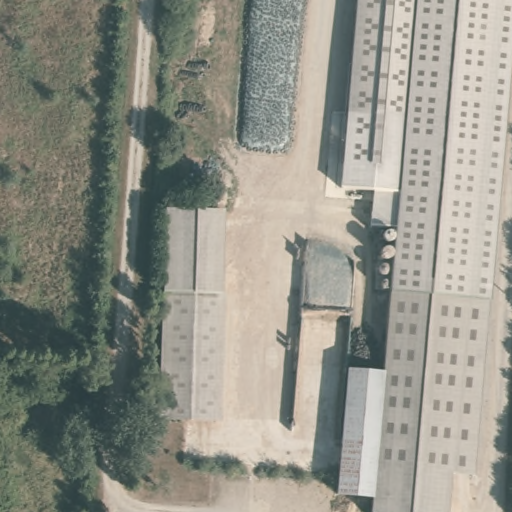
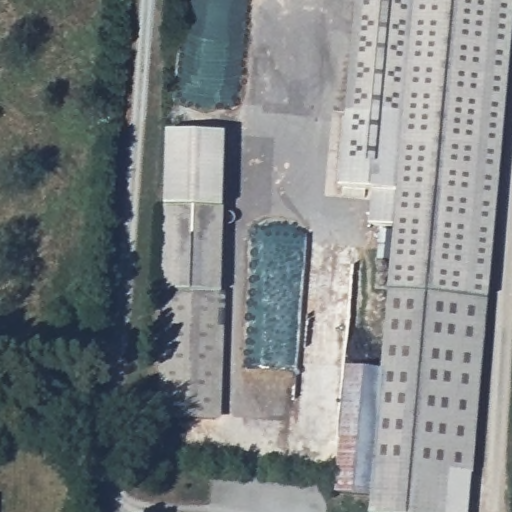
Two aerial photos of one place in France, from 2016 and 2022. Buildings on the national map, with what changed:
unchanged [(488,307),(388,301),(395,223),(373,224),(370,190),(338,188),(354,0),(512,0),(512,44),(488,307)]
new [(163,217),(163,208),(166,132),(224,133),(222,210),(223,220),(163,217)]
unchanged [(223,220),(220,291),(218,291),(161,287),(163,217),(223,220)]
unchanged [(157,415),(161,287),(218,291),(211,418),(157,415)]
unchanged [(337,485),(345,375),(383,375),(388,301),(488,307),(475,474),(451,475),(449,494),(337,485)]
unchanged [(337,485),(449,494),(448,512),(330,512),(331,500),(336,500),(337,485)]
demolished [(202,496),(201,508),(181,506),(182,494),(202,496)]

